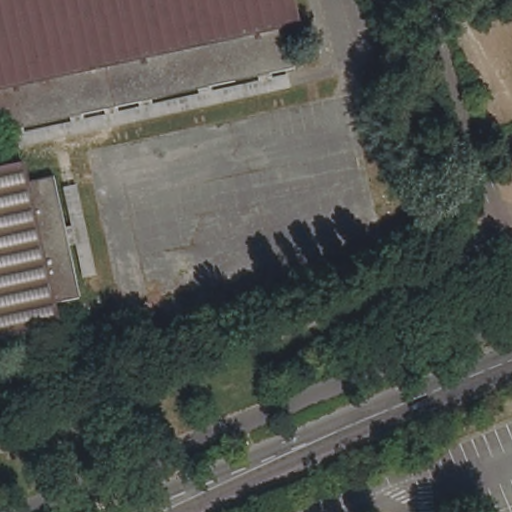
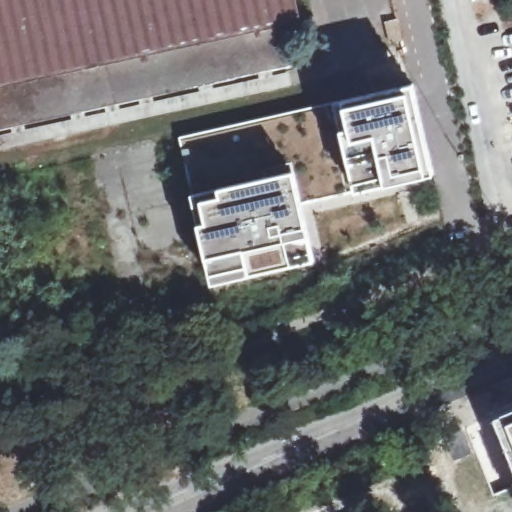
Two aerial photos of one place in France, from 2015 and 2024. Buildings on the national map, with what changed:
unchanged [(298,0),(303,21),(290,24),(0,88),(0,0),(298,0)]
unchanged [(290,24),(298,66),(0,131),(0,88),(290,24)]
new [(431,176),(426,177),(386,186),(356,192),(349,161),(343,130),(336,103),(410,86),(431,176)]
new [(300,204),(293,174),(219,190),(221,196),(201,200),(206,224),(199,225),(179,137),(336,103),(343,130),(349,161),(356,192),(300,204)]
demolished [(59,301),(63,320),(0,333),(0,165),(28,160),(31,179),(59,301)]
demolished [(56,174),(83,296),(59,301),(31,179),(56,174)]
new [(307,237),(313,261),(249,276),(212,286),(206,258),(199,225),(206,224),(201,200),(221,196),(219,190),(293,174),(300,204),(307,237)]
new [(512,466),(493,416),(512,408),(512,466)]

